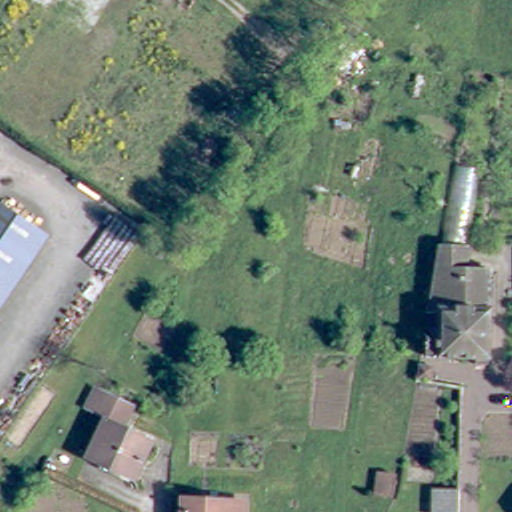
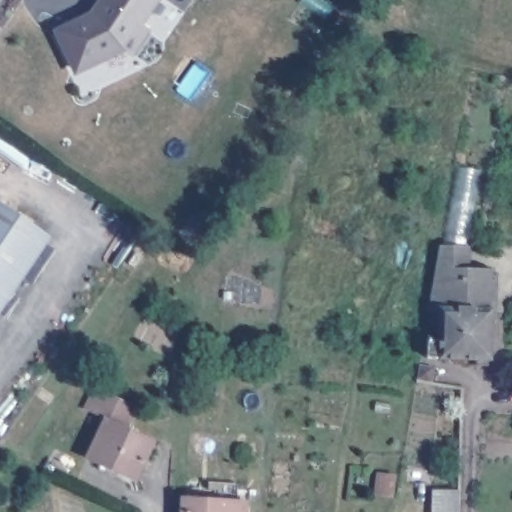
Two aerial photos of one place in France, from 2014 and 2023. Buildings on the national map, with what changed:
new [(150,30),(133,56),(126,51),(75,76),(53,30),(90,12),(99,0),(161,0),(145,26),(150,30)]
unchanged [(0,308),(0,203),(49,235),(0,308)]
unchanged [(437,306),(447,250),(475,250),(475,268),(500,269),(500,282),(498,359),(433,358),(433,340),(446,340),(447,311),(436,310),(437,306)]
unchanged [(425,379),(427,364),(440,367),(438,382),(424,380),(425,379)]
unchanged [(90,463),(106,419),(90,414),(105,388),(140,404),(127,425),(159,438),(138,483),(90,463)]
unchanged [(388,475),(400,477),(396,497),(385,495),(388,475)]
unchanged [(191,509),(209,512),(191,512),(191,509)]

